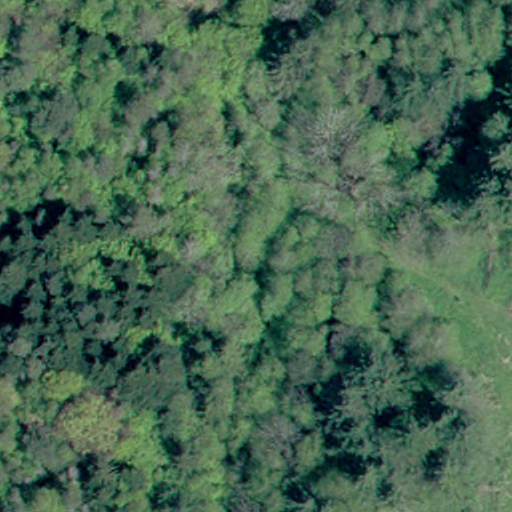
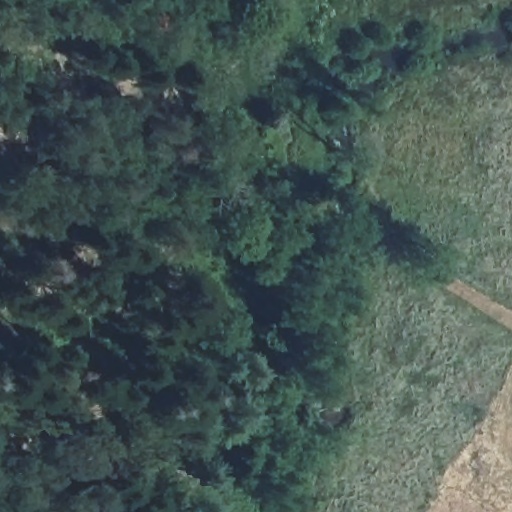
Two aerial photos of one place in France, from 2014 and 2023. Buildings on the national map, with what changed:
unchanged [(260,114),(250,179),(178,167),(190,101),(260,114)]

